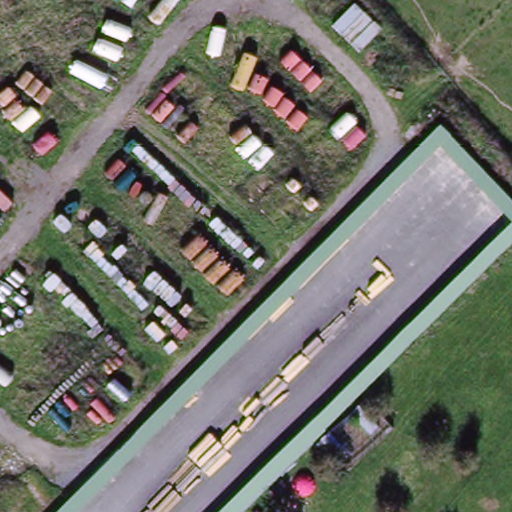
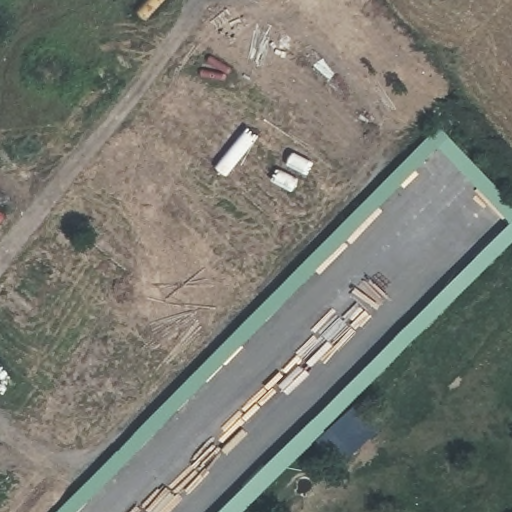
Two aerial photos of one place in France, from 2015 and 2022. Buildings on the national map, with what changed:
[]

